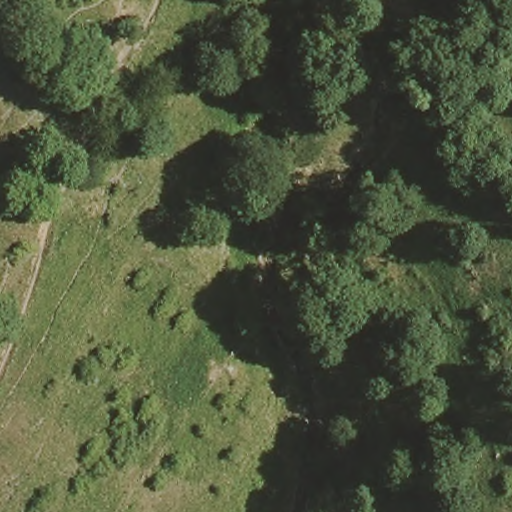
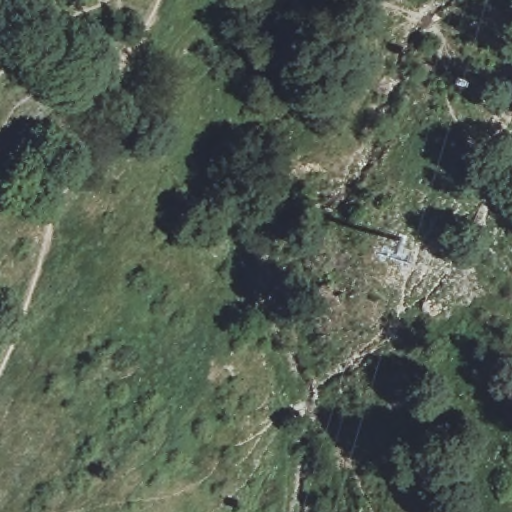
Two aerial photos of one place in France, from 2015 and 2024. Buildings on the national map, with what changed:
[]

